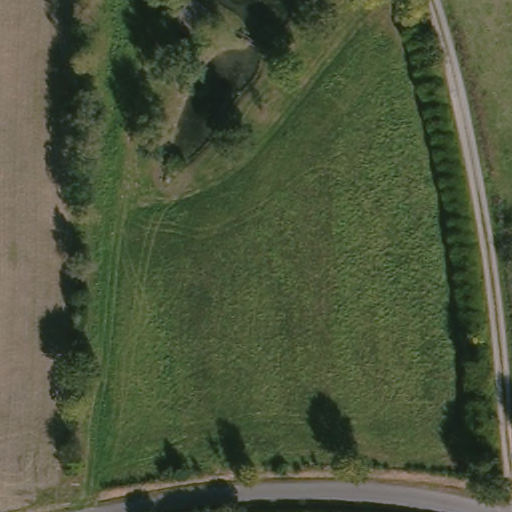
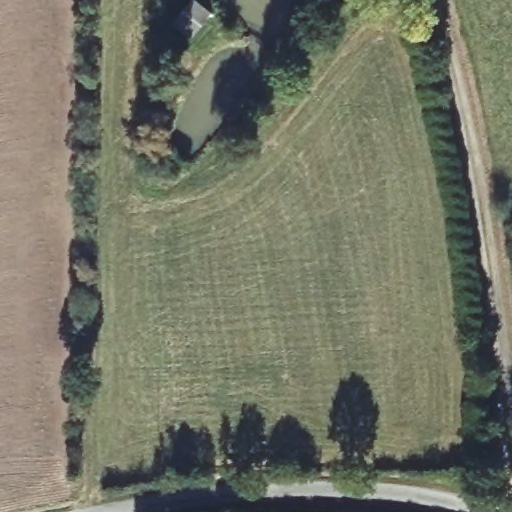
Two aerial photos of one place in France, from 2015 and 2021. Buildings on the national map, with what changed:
unchanged [(196,39),(176,26),(195,0),(200,0),(216,12),(196,39)]

